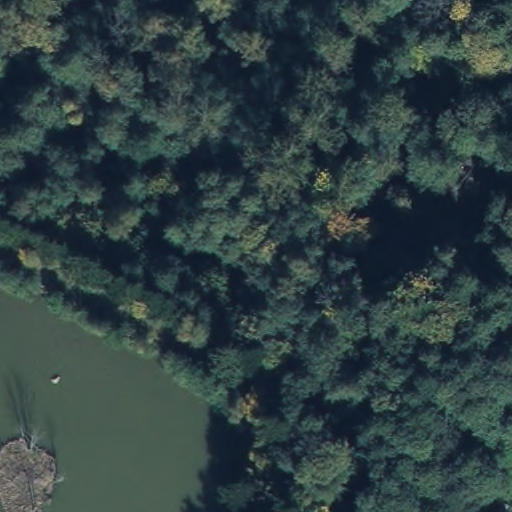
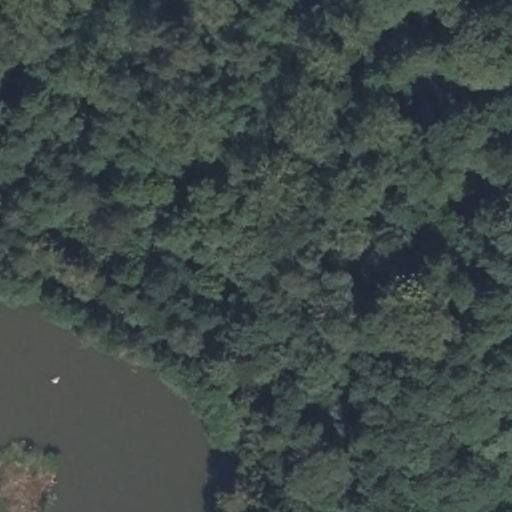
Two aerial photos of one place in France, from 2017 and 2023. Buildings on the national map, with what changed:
unchanged [(498,162),(493,174),(465,164),(469,150),(498,162)]

